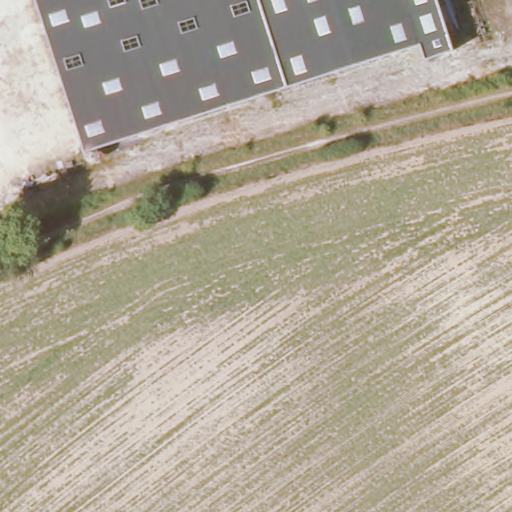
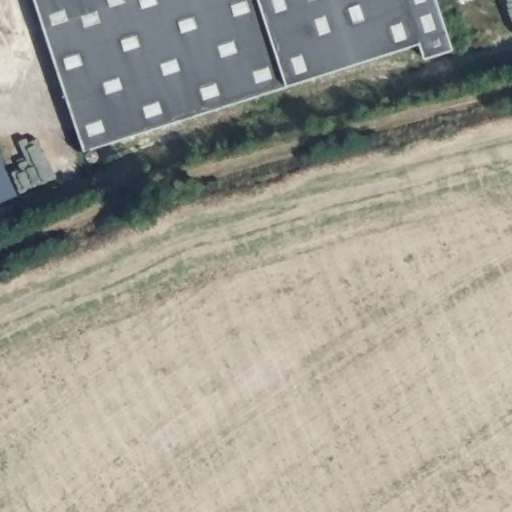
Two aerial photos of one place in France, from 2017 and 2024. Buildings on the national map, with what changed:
unchanged [(286,86),(84,152),(36,0),(259,0),(286,86)]
unchanged [(452,50),(425,60),(420,44),(286,86),(259,0),(437,0),(452,50)]
new [(0,157),(16,195),(0,203),(0,157)]

